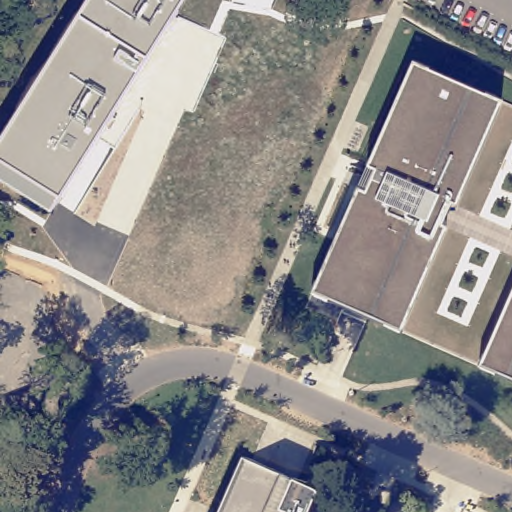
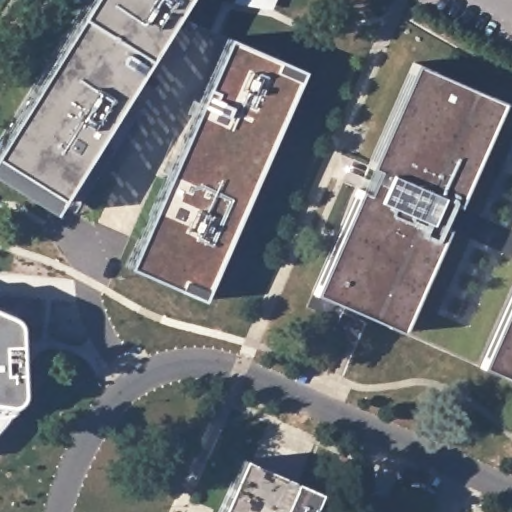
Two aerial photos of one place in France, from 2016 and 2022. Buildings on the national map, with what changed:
unchanged [(0,139),(86,0),(183,0),(50,212),(0,179),(0,139)]
unchanged [(231,1),(231,0),(273,0),(269,8),(231,1)]
new [(225,36),(300,69),(200,301),(124,268),(225,36)]
unchanged [(500,100),(400,331),(312,292),(412,62),(500,100)]
unchanged [(480,366),(512,291),(512,380),(480,366)]
new [(13,319),(16,325),(16,332),(17,358),(20,388),(17,400),(15,404),(9,412),(0,422),(0,309),(0,310),(13,319)]
unchanged [(310,512),(217,512),(240,458),(319,493),(310,512)]

